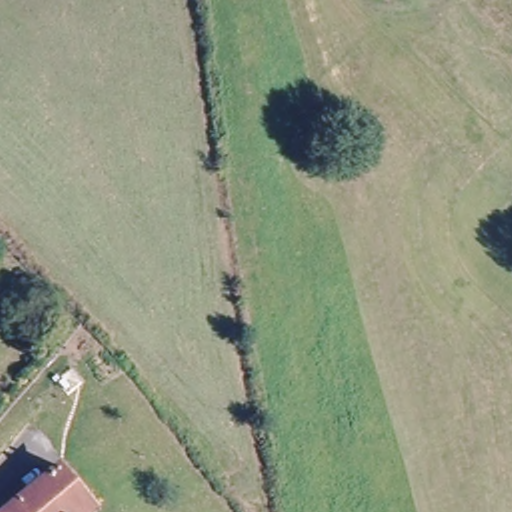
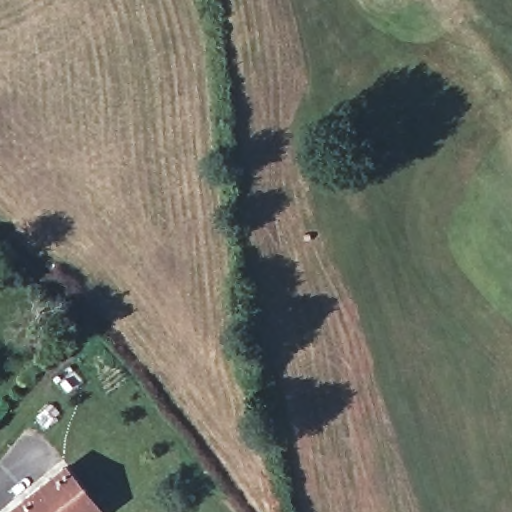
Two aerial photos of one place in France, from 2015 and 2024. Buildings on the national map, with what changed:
unchanged [(63,469),(88,504),(94,512),(8,512),(63,469)]

